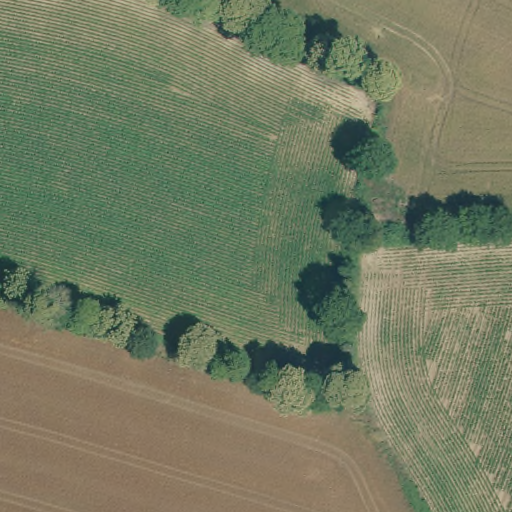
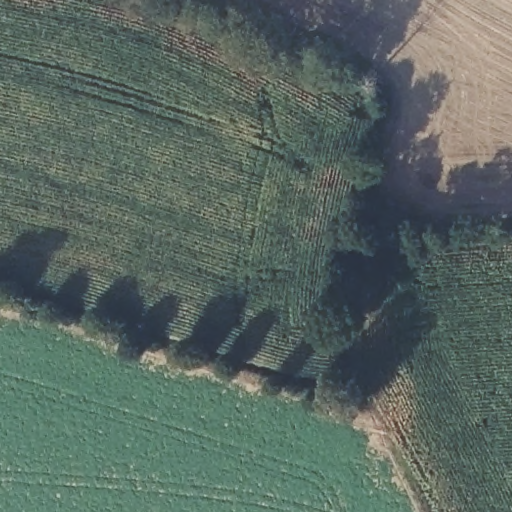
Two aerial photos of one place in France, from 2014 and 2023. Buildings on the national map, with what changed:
[]

